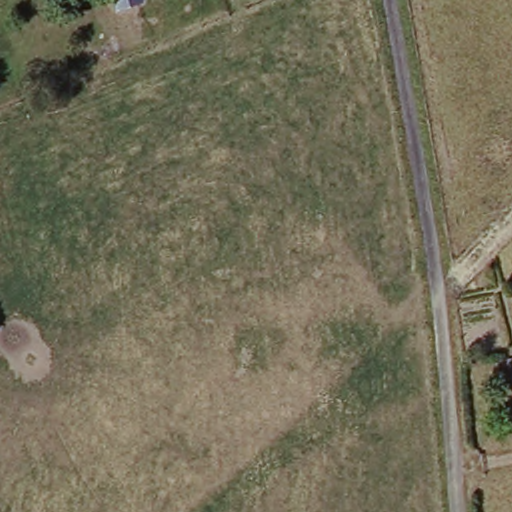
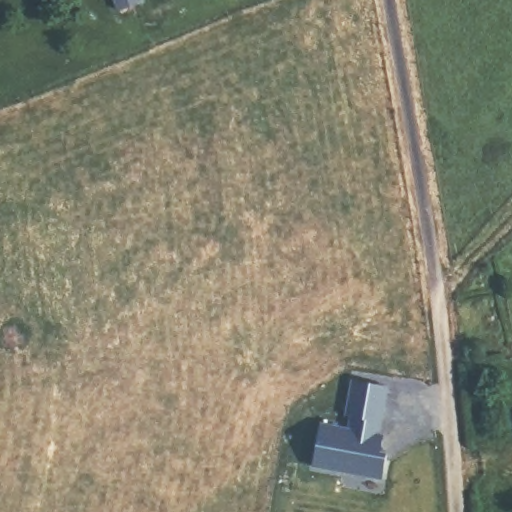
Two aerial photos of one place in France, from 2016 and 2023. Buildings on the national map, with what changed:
new [(144,1),(119,9),(116,0),(144,0),(144,1)]
new [(350,430),(352,417),(347,416),(350,397),(385,403),(381,422),(379,435),(384,436),(380,453),(387,454),(382,479),(313,466),(321,424),(350,430)]

